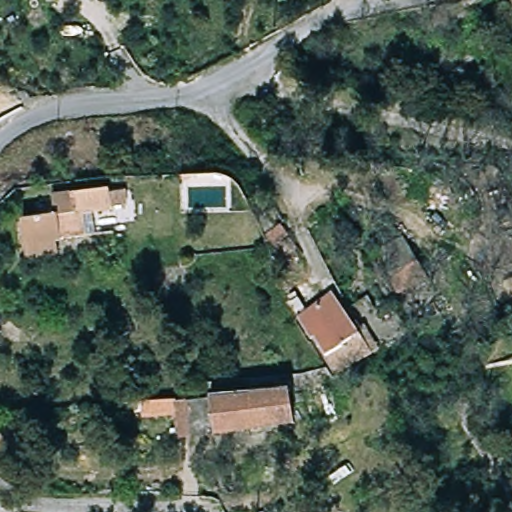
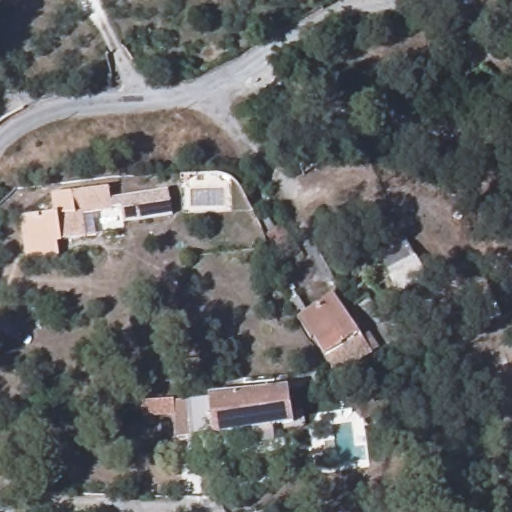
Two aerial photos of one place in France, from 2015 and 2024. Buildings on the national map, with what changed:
unchanged [(18,247),(17,241),(12,218),(47,209),(45,197),(60,192),(63,195),(97,187),(102,206),(75,213),(79,238),(55,244),(32,250),(20,252),(18,247)]
unchanged [(290,240),(277,248),(268,236),(281,227),(290,240)]
unchanged [(422,277),(394,294),(375,253),(400,239),(422,277)]
unchanged [(330,291),(355,332),(339,344),(347,363),(332,374),(308,337),(304,338),(291,315),(330,291)]
unchanged [(172,432),(171,414),(143,416),(141,400),(290,390),(292,422),(172,432)]

